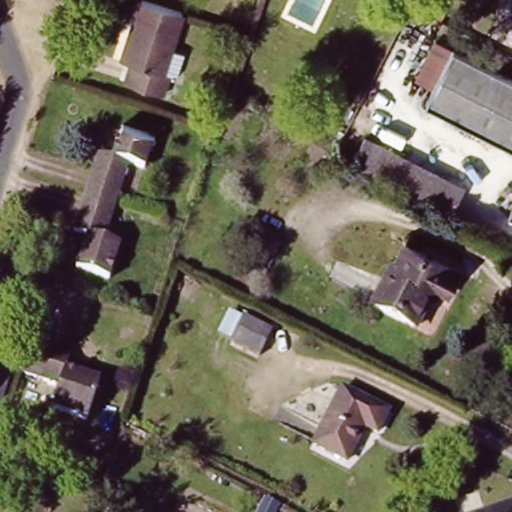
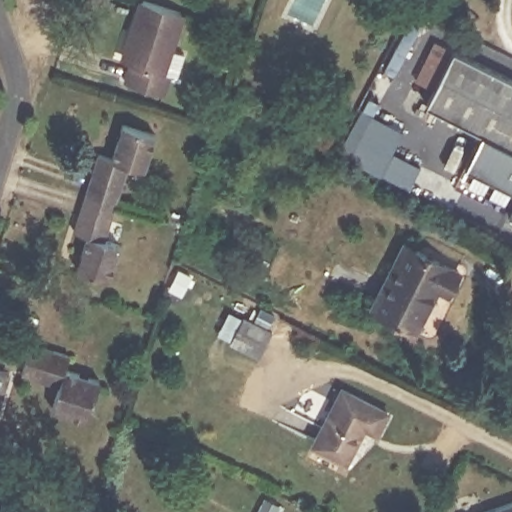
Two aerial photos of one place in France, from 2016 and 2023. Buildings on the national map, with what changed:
unchanged [(190,12),(163,95),(127,83),(133,63),(128,61),(136,35),(129,33),(141,0),(151,0),(190,12)]
unchanged [(424,106),(453,45),(512,74),(512,149),(424,106)]
unchanged [(146,164),(134,160),(121,200),(87,190),(100,151),(114,155),(124,123),(156,133),(146,164)]
new [(464,165),(479,134),(512,151),(512,188),(464,165)]
unchanged [(369,138),(469,188),(457,212),(436,201),(358,162),(369,138)]
unchanged [(121,200),(108,238),(124,243),(111,281),(79,270),(91,234),(76,228),(87,190),(121,200)]
unchanged [(454,267),(449,276),(444,285),(433,280),(409,324),(371,303),(403,241),(454,267)]
unchanged [(274,342),(263,365),(233,349),(246,328),(274,342)]
unchanged [(68,355),(64,365),(101,379),(88,419),(50,408),(58,384),(19,372),(29,341),(68,355)]
unchanged [(379,411),(369,432),(358,426),(339,462),(305,444),(336,389),(379,411)]
unchanged [(485,512),(512,502),(512,512),(485,512)]

